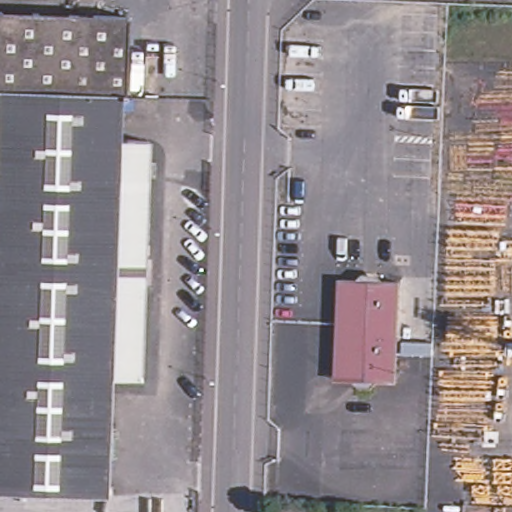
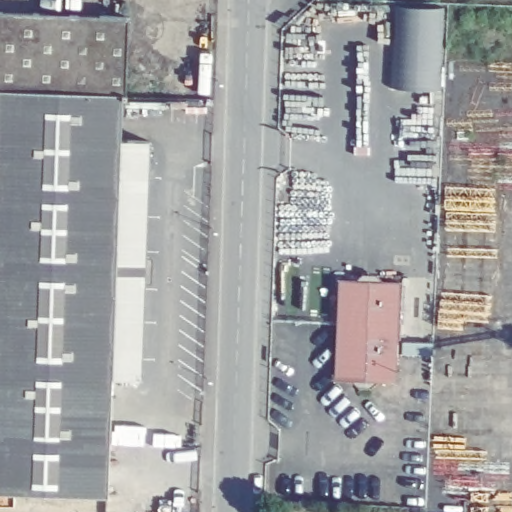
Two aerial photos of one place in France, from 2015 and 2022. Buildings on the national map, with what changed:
new [(402,7),(440,10),(435,93),(397,89),(402,7)]
unchanged [(0,93),(0,10),(64,12),(60,96),(0,93)]
unchanged [(133,15),(131,100),(128,100),(60,96),(64,12),(133,15)]
unchanged [(144,382),(102,381),(99,494),(0,491),(0,93),(60,96),(128,100),(126,144),(152,145),(144,382)]
unchanged [(330,382),(333,284),(398,286),(395,384),(330,382)]

